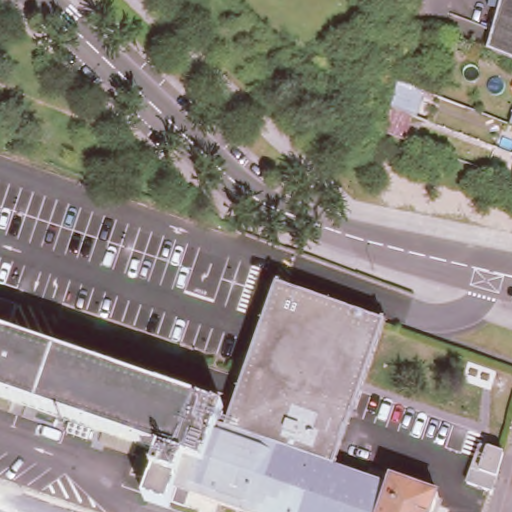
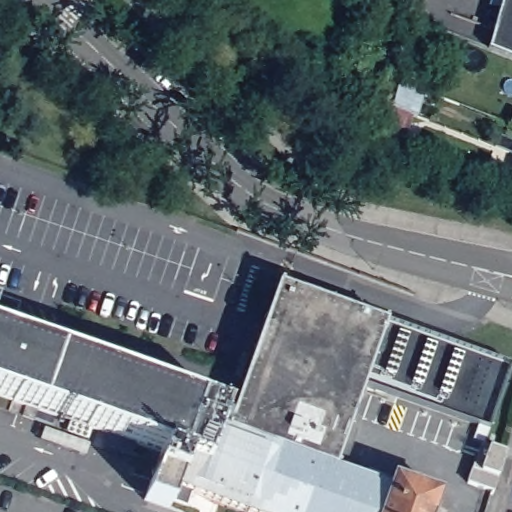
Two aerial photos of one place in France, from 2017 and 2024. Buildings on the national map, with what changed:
unchanged [(486,50),(499,0),(512,0),(512,60),(486,50)]
unchanged [(401,81),(426,91),(416,116),(412,115),(404,139),(387,131),(393,108),(401,81)]
unchanged [(508,124),(512,113),(512,125),(508,124)]
unchanged [(508,154),(512,139),(512,156),(508,154)]
unchanged [(511,181),(512,177),(512,181),(511,181)]
unchanged [(245,373),(280,278),(385,315),(332,462),(392,482),(394,475),(442,491),(435,512),(260,512),(226,500),(222,512),(198,512),(192,510),(208,464),(213,466),(232,409),(245,373)]
unchanged [(32,306),(28,315),(45,321),(49,312),(72,320),(62,348),(0,326),(0,299),(1,295),(32,306)]
new [(512,358),(492,420),(363,376),(385,315),(512,358)]
unchanged [(232,409),(213,466),(208,464),(191,459),(0,390),(0,326),(62,348),(232,409)]
unchanged [(480,443),(502,450),(492,487),(468,478),(480,443)]
new [(208,464),(196,498),(192,510),(168,508),(143,500),(155,471),(163,449),(186,457),(191,459),(208,464)]

